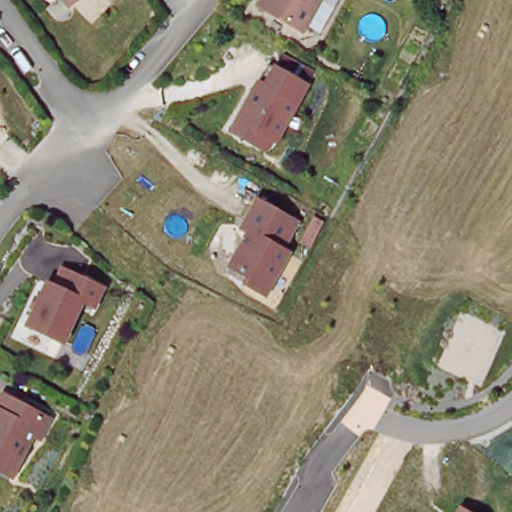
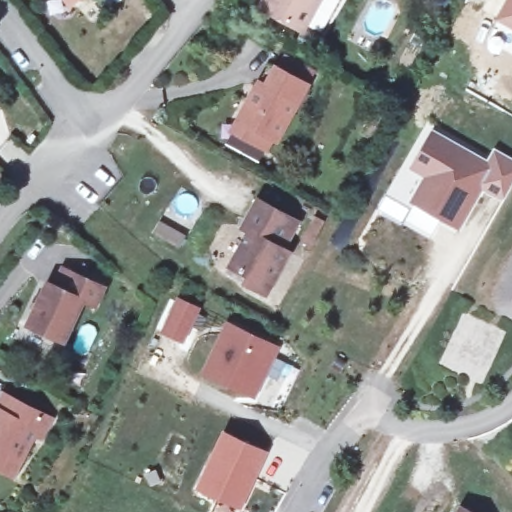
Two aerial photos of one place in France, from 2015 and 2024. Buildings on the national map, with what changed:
unchanged [(260,0),(315,0),(299,28),(261,7),(259,0),(260,0)]
new [(512,0),(512,30),(494,20),(505,0),(512,0)]
unchanged [(233,127),(240,117),(261,79),(271,61),(278,64),(309,83),(278,138),(274,136),(267,147),(233,127)]
new [(414,171),(435,135),(491,166),(498,155),(512,163),(512,192),(506,202),(484,190),(461,230),(414,203),(429,179),(414,171)]
unchanged [(255,196),(294,218),(279,245),(286,249),(263,291),(242,279),(246,273),(236,267),(231,254),(238,243),(243,234),(246,228),(239,225),(255,196)]
unchanged [(49,278),(56,282),(65,265),(105,284),(97,302),(85,297),(65,338),(29,321),(49,278)]
new [(199,308),(179,345),(154,334),(173,295),(199,308)]
new [(229,322),(279,346),(254,394),(206,371),(229,322)]
unchanged [(2,412),(9,398),(48,418),(40,433),(38,438),(30,434),(9,475),(0,470),(0,413),(2,412)]
new [(223,428),(271,451),(242,510),(195,489),(223,428)]
unchanged [(471,512),(458,512),(462,506),(471,512)]

